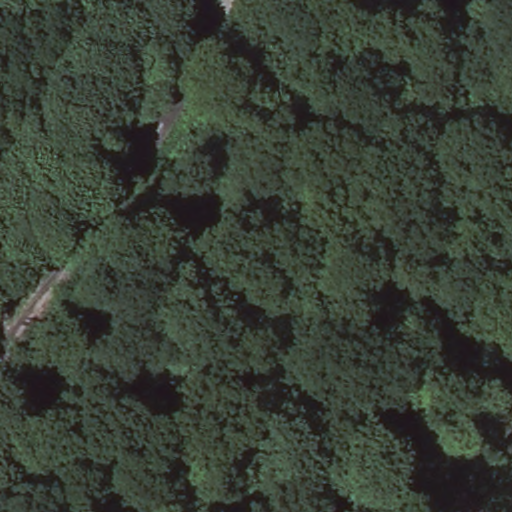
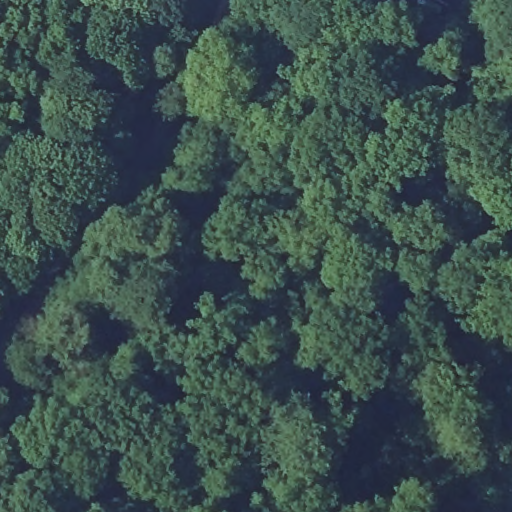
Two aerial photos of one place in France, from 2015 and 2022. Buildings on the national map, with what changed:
unchanged [(419,0),(463,0),(457,14),(419,0)]

